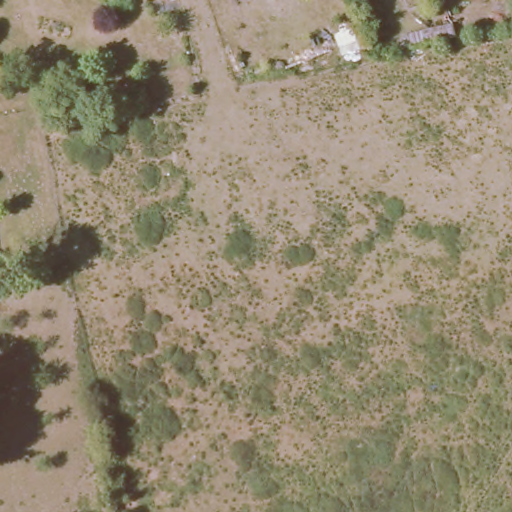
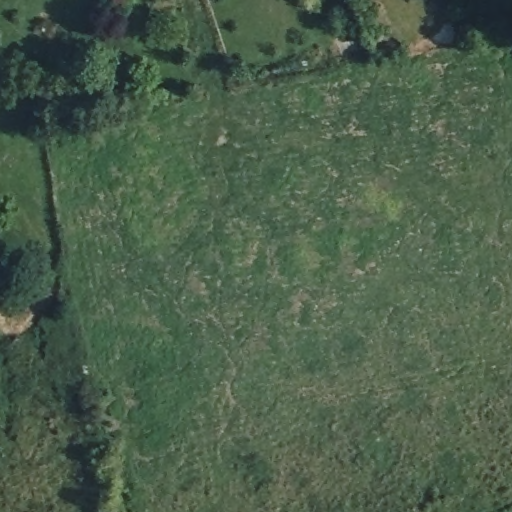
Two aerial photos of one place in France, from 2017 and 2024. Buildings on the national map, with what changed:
unchanged [(437,53),(397,60),(395,48),(435,40),(437,53)]

